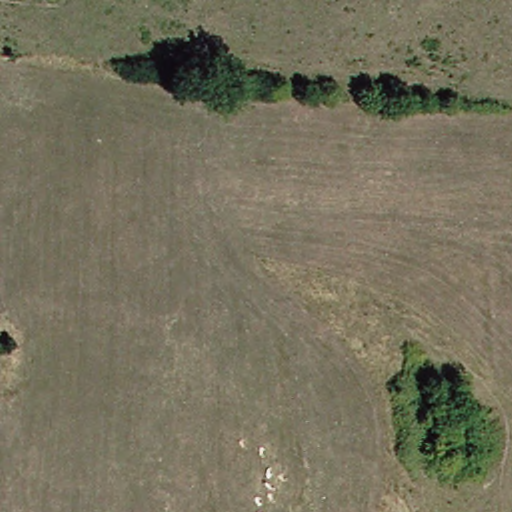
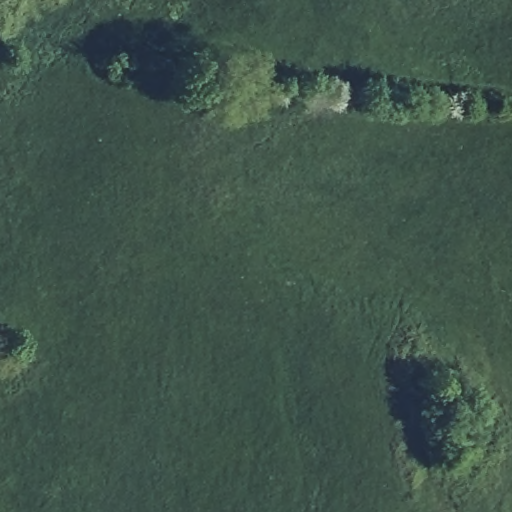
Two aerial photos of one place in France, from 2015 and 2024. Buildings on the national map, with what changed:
[]

